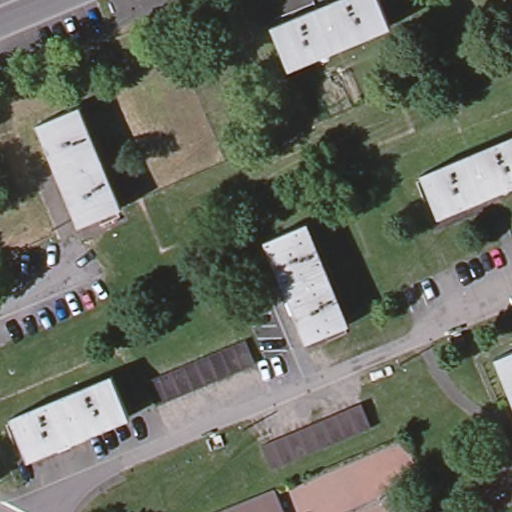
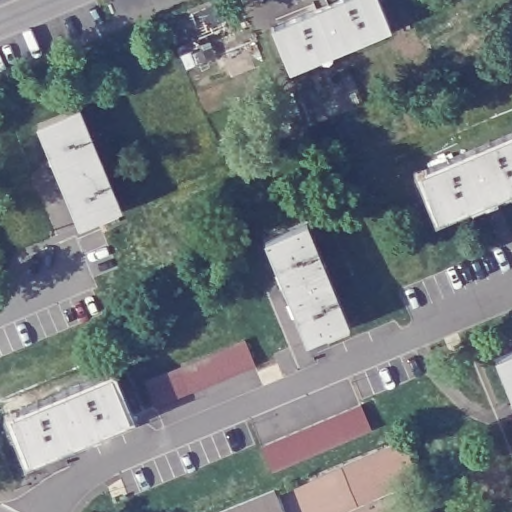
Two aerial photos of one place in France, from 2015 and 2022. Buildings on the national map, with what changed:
unchanged [(378,0),(389,24),(289,69),(270,29),(334,0),(378,0)]
unchanged [(82,104),(120,204),(81,220),(42,119),(82,104)]
unchanged [(441,216),(424,175),(512,139),(512,186),(441,216)]
unchanged [(308,222),(351,324),(310,340),(267,239),(308,222)]
unchanged [(259,364),(151,407),(140,379),(249,336),(259,364)]
unchanged [(495,356),(512,349),(512,396),(495,356)]
unchanged [(128,413),(26,457),(8,419),(110,374),(128,413)]
unchanged [(376,428),(266,474),(255,446),(365,400),(376,428)]
unchanged [(284,512),(224,512),(276,491),(284,512)]

